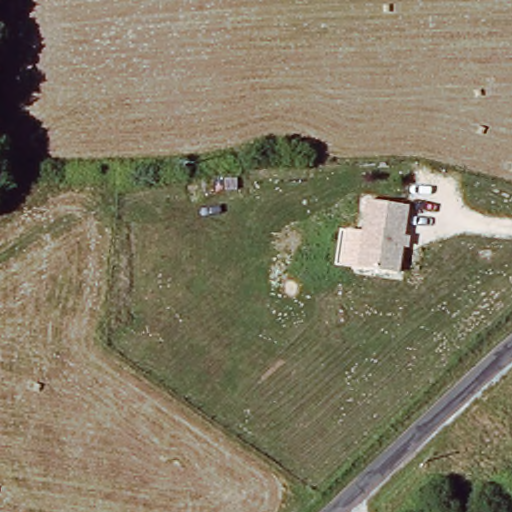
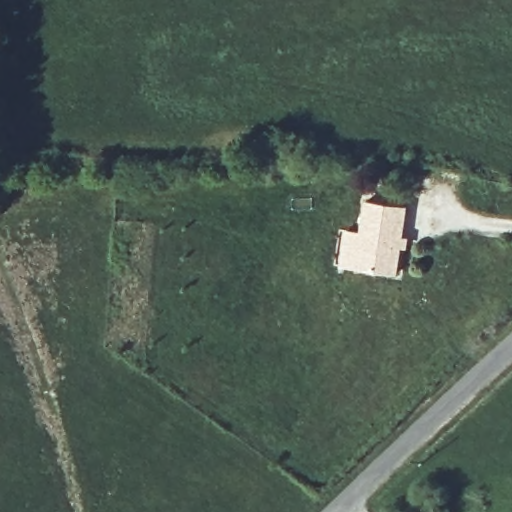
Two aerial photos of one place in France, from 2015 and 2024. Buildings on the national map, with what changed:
unchanged [(362,199),(407,205),(403,235),(408,236),(407,247),(402,247),(398,272),(353,267),(362,199)]

